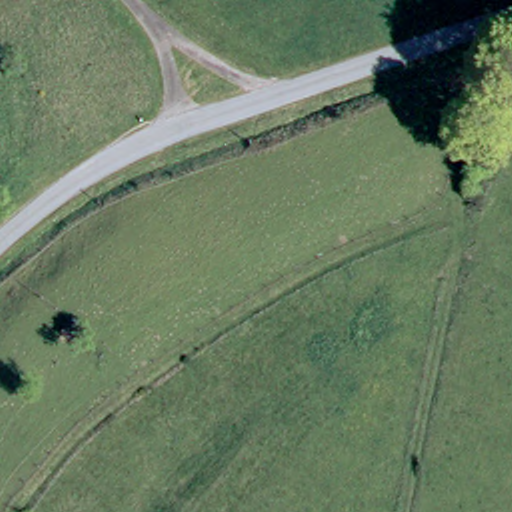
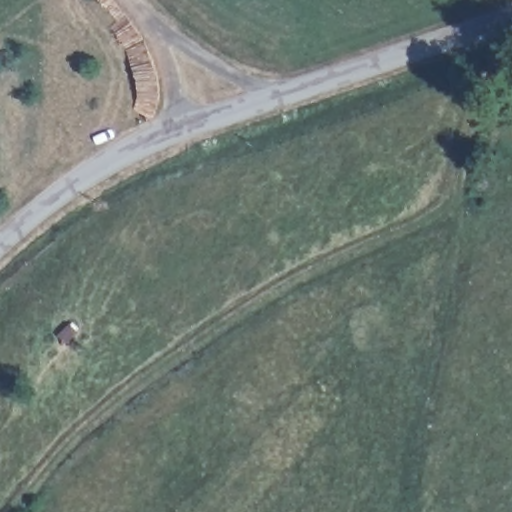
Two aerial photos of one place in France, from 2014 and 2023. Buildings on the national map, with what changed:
[]

